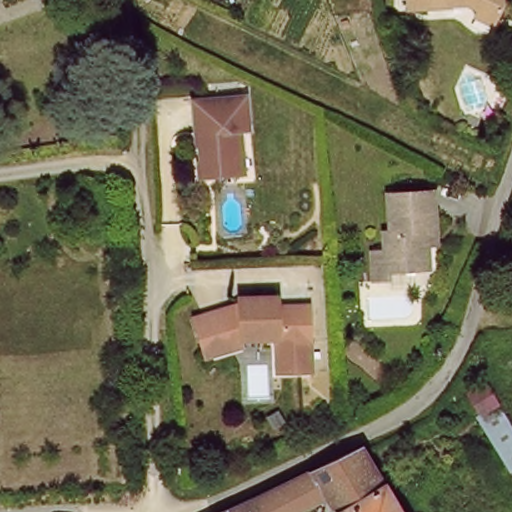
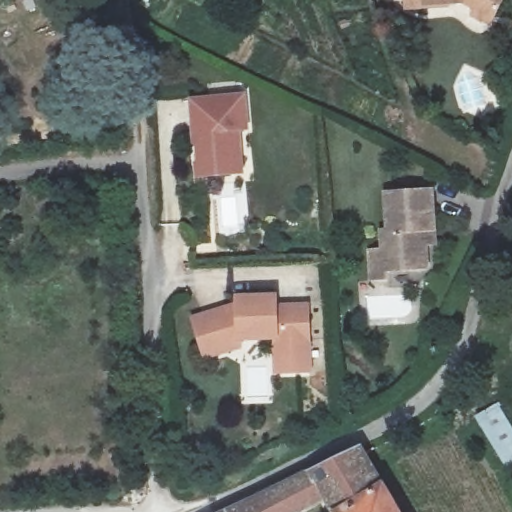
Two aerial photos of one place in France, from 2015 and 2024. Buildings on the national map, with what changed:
unchanged [(478,7),(466,2),(429,4),(429,9),(409,10),(408,0),(503,0),(498,14),(495,22),(476,14),(478,7)]
unchanged [(232,172),(204,173),(199,173),(196,129),(195,93),(247,92),(248,125),(239,125),(240,146),(241,171),(232,172)]
unchanged [(375,276),(373,248),(385,247),(383,227),(390,226),(388,190),(426,186),(429,221),(430,231),(425,231),(427,262),(385,265),(387,275),(375,276)]
unchanged [(200,362),(199,354),(191,322),(238,313),(237,306),(271,303),(272,311),(306,310),(313,375),(280,378),(275,343),(235,346),(236,355),(200,362)]
unchanged [(512,427),(512,475),(505,481),(472,424),(502,411),(512,427)]
unchanged [(364,459),(368,465),(395,512),(330,512),(329,509),(319,478),(364,459)]
unchanged [(270,505),(319,478),(329,509),(323,512),(260,512),(270,505)]

